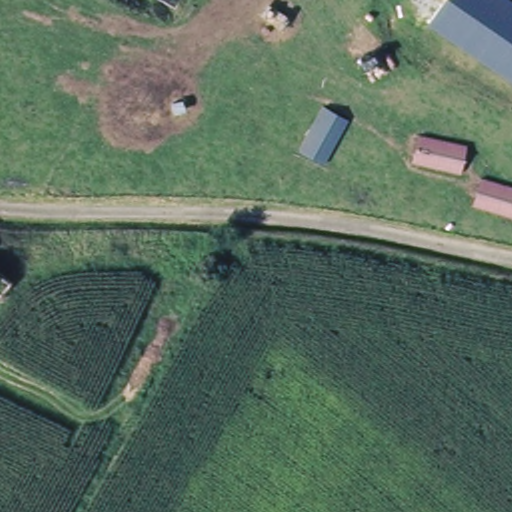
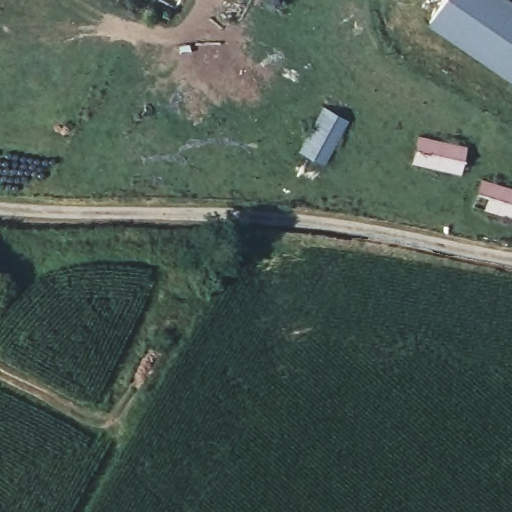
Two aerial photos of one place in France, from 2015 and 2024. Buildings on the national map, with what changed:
unchanged [(449,0),(501,0),(512,7),(512,80),(430,26),(449,0)]
unchanged [(298,149),(323,106),(350,121),(327,165),(298,149)]
unchanged [(410,163),(418,133),(467,146),(462,173),(410,163)]
unchanged [(471,206),(480,178),(512,188),(512,218),(471,206)]

